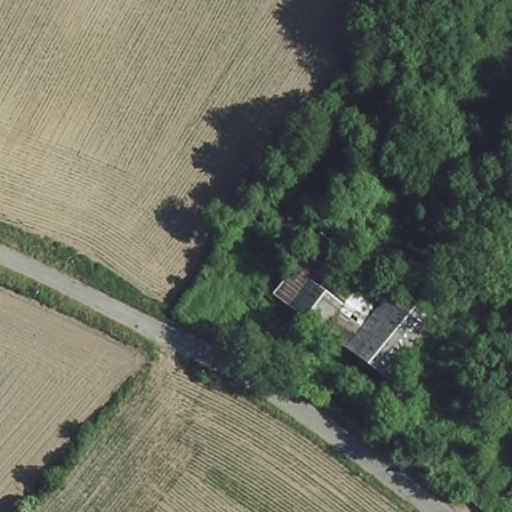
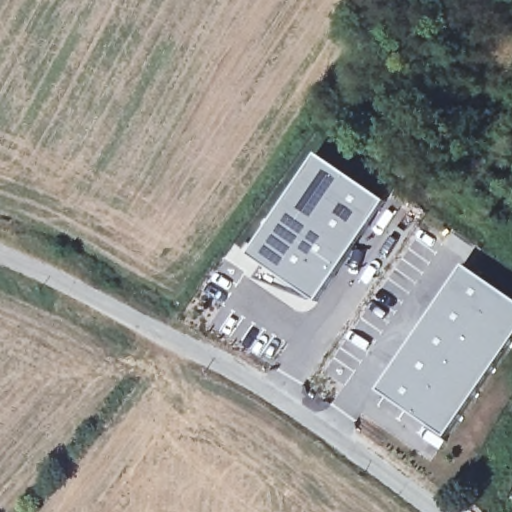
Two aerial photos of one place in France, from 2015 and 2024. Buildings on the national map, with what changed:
new [(314,301),(296,288),(291,293),(255,279),(266,266),(248,254),(317,154),(383,201),(314,301)]
demolished [(435,317),(387,384),(275,301),(323,235),(435,317)]
demolished [(393,251),(380,268),(363,254),(375,238),(393,251)]
new [(445,436),(378,391),(463,266),(512,299),(512,340),(445,436)]

